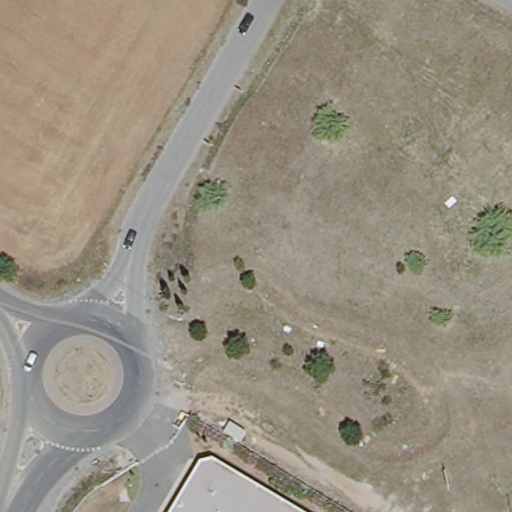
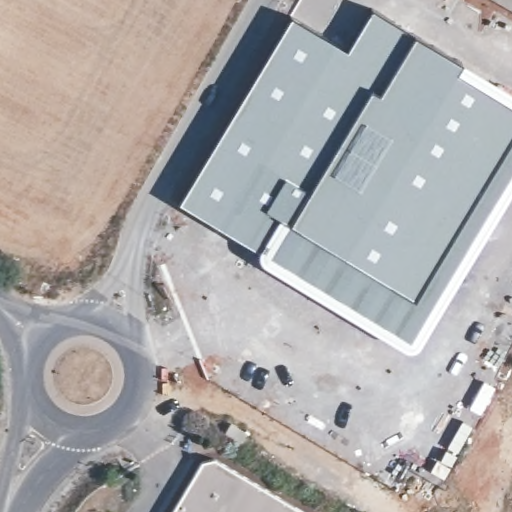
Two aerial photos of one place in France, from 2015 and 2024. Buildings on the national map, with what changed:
new [(291,14),(346,48),(371,8),(414,34),(379,91),(371,87),(289,222),(279,217),(258,251),(177,203),(291,14)]
new [(289,222),(371,87),(379,91),(414,34),(463,63),(512,94),(512,187),(494,217),(429,328),(410,351),(403,348),(275,272),(258,251),(279,217),(289,222)]
unchanged [(208,458),(218,457),(309,512),(171,512),(201,461),(208,458)]

